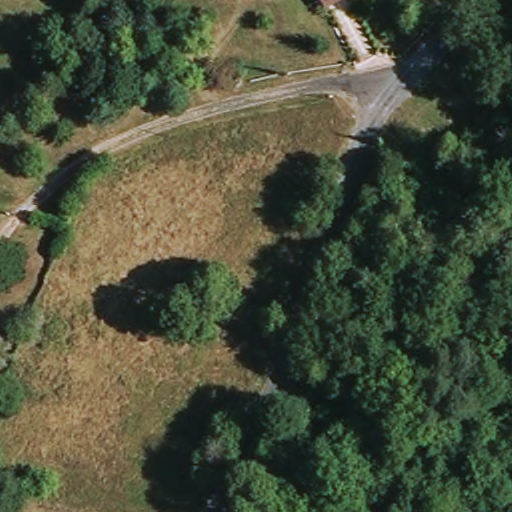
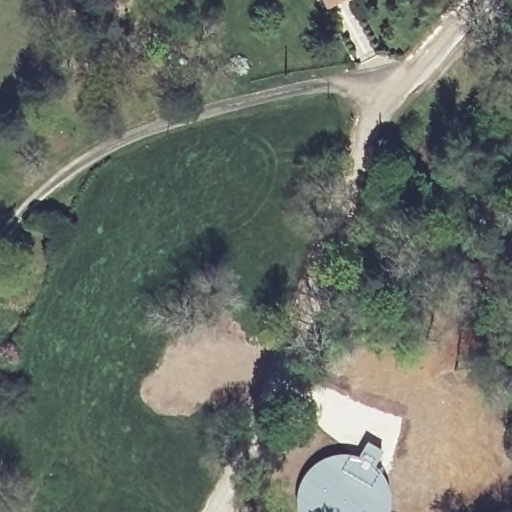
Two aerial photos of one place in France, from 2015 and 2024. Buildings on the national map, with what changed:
unchanged [(320,0),(356,0),(327,15),(320,0)]
new [(301,480),(309,467),(323,457),(340,454),(357,456),(365,441),(382,449),(375,466),(379,469),(386,481),(390,497),(388,512),(298,512),(297,499),(301,480)]

